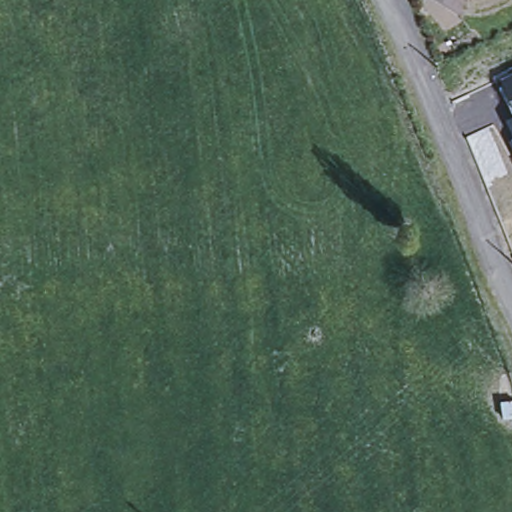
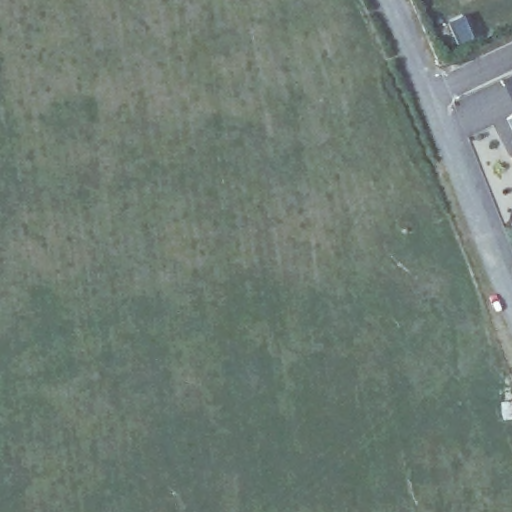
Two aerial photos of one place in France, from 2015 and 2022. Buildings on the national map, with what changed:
unchanged [(512,114),(496,79),(512,72),(512,128),(507,117),(512,114)]
unchanged [(512,136),(512,139),(511,137),(512,136)]

